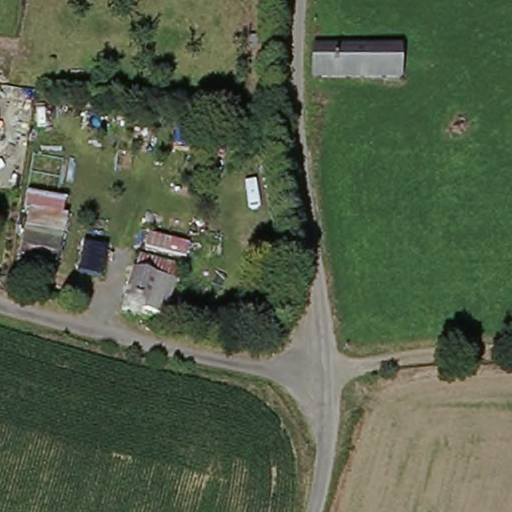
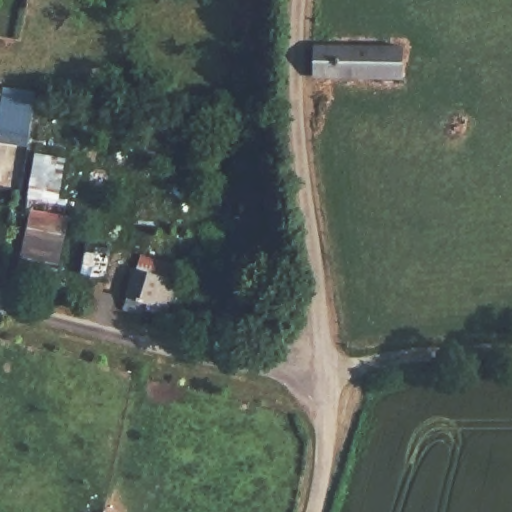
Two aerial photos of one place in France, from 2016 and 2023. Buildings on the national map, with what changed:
unchanged [(317,46),(407,49),(405,78),(318,76),(317,46)]
new [(0,118),(4,87),(32,91),(25,147),(0,142),(0,121),(0,118)]
unchanged [(11,277),(40,156),(60,159),(56,175),(66,176),(63,196),(73,197),(54,287),(11,277)]
unchanged [(103,273),(79,268),(84,243),(109,246),(103,273)]
unchanged [(180,278),(169,314),(150,309),(142,313),(135,307),(134,300),(130,299),(140,268),(180,278)]

